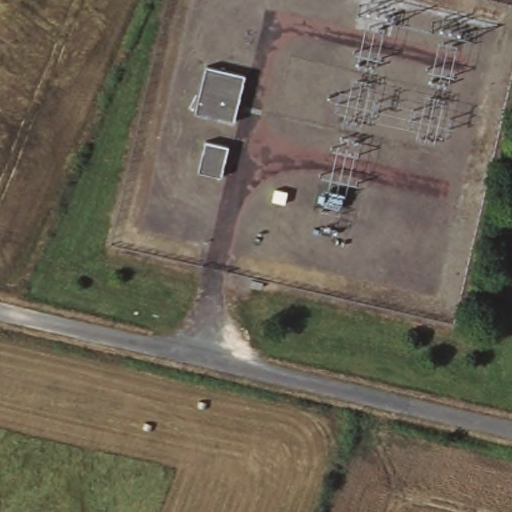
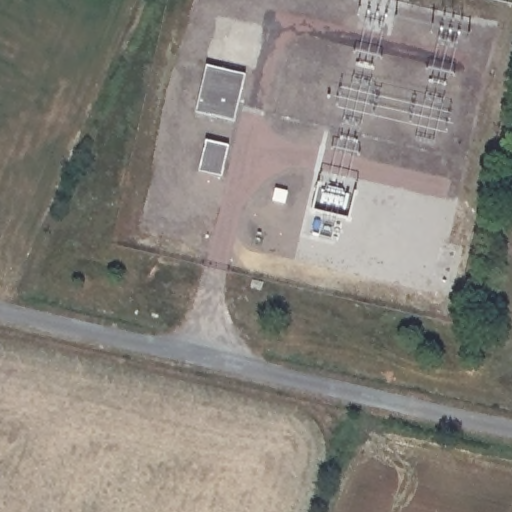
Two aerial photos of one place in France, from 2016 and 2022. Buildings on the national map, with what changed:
unchanged [(205,67),(245,76),(234,124),(194,114),(205,67)]
unchanged [(202,144),(228,150),(221,180),(197,176),(202,144)]

